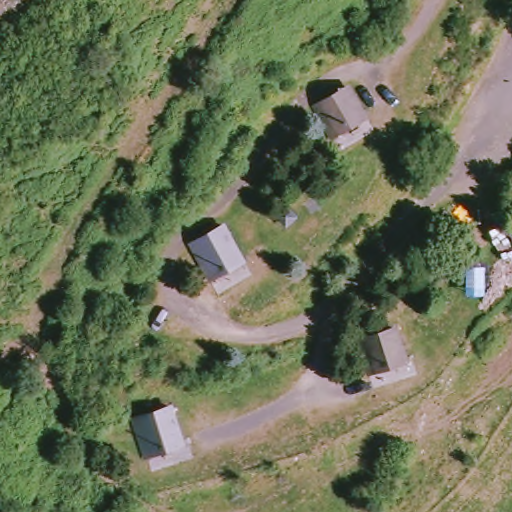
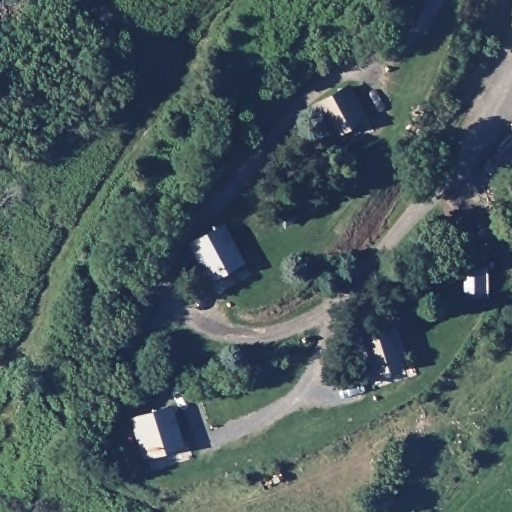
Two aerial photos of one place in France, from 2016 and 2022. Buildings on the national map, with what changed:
unchanged [(366,127),(335,143),(320,114),(352,97),(366,127)]
unchanged [(250,263),(214,280),(202,252),(238,235),(250,263)]
unchanged [(405,362),(370,374),(361,345),(397,333),(405,362)]
unchanged [(186,446),(150,456),(141,424),(177,414),(186,446)]

